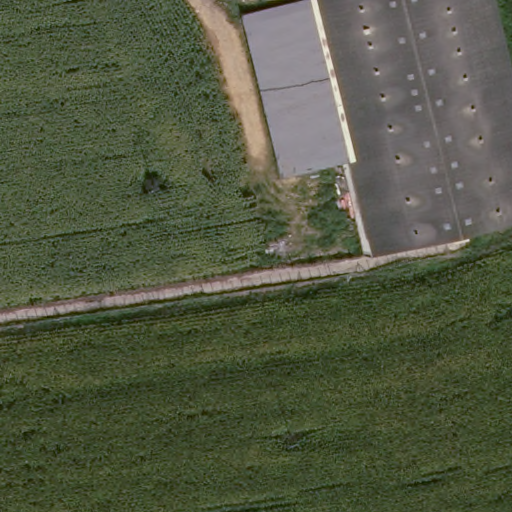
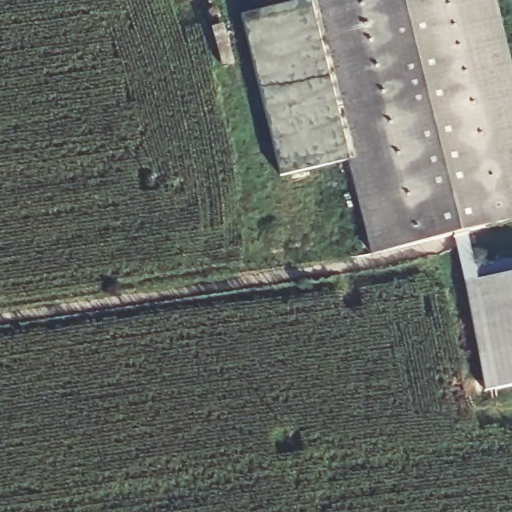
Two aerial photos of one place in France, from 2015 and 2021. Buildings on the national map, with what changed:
unchanged [(344,159),(279,173),(240,14),(301,0),(308,0),(344,159)]
unchanged [(512,80),(512,224),(367,258),(308,0),(493,0),(512,80)]
new [(512,258),(512,386),(486,391),(454,238),(467,235),(474,263),(512,258)]

